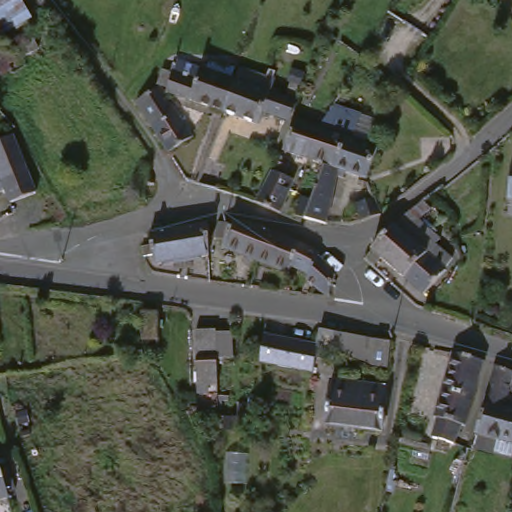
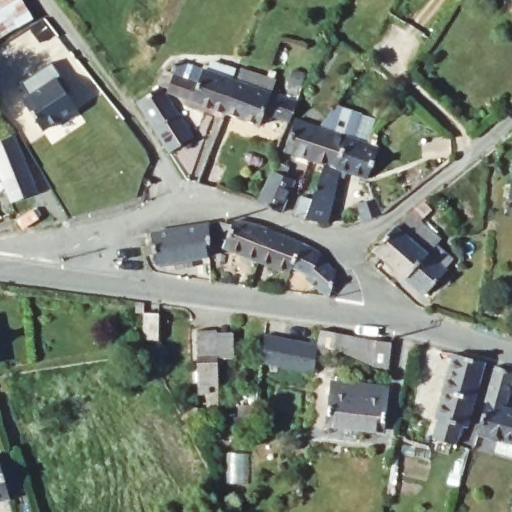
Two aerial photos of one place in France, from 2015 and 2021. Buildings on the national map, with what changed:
unchanged [(0,41),(0,0),(20,0),(33,21),(0,41)]
unchanged [(41,54),(0,80),(0,52),(28,35),(41,54)]
new [(60,75),(70,89),(66,92),(76,106),(43,129),(23,101),(29,96),(19,82),(50,61),(60,75)]
unchanged [(167,92),(158,90),(162,76),(171,79),(178,63),(237,85),(224,118),(166,95),(167,92)]
unchanged [(224,118),(237,85),(239,86),(243,75),(273,86),(270,97),(272,98),(298,108),(291,126),(288,126),(265,118),(260,131),(224,118)]
unchanged [(179,151),(168,159),(153,134),(134,107),(160,93),(163,98),(166,103),(176,119),(191,144),(179,151)]
unchanged [(324,170),(309,164),(284,155),(294,125),(319,134),(345,143),(349,145),(364,150),(377,155),(366,185),(338,175),(326,229),(304,224),(294,221),(303,201),(311,205),(324,170)]
unchanged [(11,209),(0,189),(0,145),(8,142),(36,198),(11,209)]
unchanged [(273,171),(276,173),(281,163),(291,168),(286,178),(295,182),(281,212),(256,203),(273,171)]
unchanged [(510,195),(512,183),(512,195),(510,195)]
unchanged [(363,222),(358,205),(376,199),(379,216),(363,222)]
unchanged [(376,253),(408,219),(411,216),(443,245),(438,249),(455,265),(446,274),(448,276),(426,298),(376,253)]
unchanged [(228,252),(228,246),(218,242),(224,226),(235,230),(237,225),(272,234),(262,262),(261,265),(228,252)]
unchanged [(196,264),(198,271),(180,274),(178,265),(158,268),(156,250),(155,237),(213,228),(214,261),(196,264)]
unchanged [(296,267),(293,277),(261,265),(262,262),(272,234),(283,237),(305,248),(296,267)]
unchanged [(296,267),(305,248),(323,258),(323,262),(341,277),(333,302),(314,282),(316,276),(296,267)]
unchanged [(161,342),(144,342),(145,317),(162,317),(161,342)]
unchanged [(221,329),(222,332),(238,333),(237,357),(223,357),(223,384),(203,383),(201,330),(221,329)]
unchanged [(328,340),(332,330),(398,342),(393,369),(328,340)]
unchanged [(326,346),(324,360),(323,369),(271,363),(274,337),(281,338),(326,346)]
unchanged [(438,438),(461,354),(493,361),(468,445),(438,438)]
unchanged [(484,432),(503,365),(512,368),(512,405),(512,440),(484,432)]
unchanged [(381,430),(325,422),(330,381),(386,388),(381,430)]
unchanged [(0,500),(0,455),(13,497),(0,500)]

